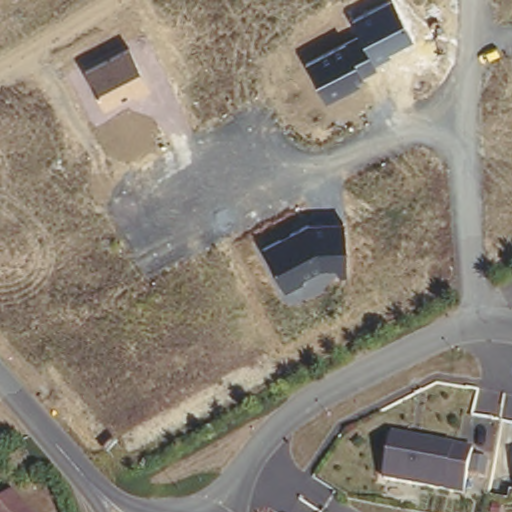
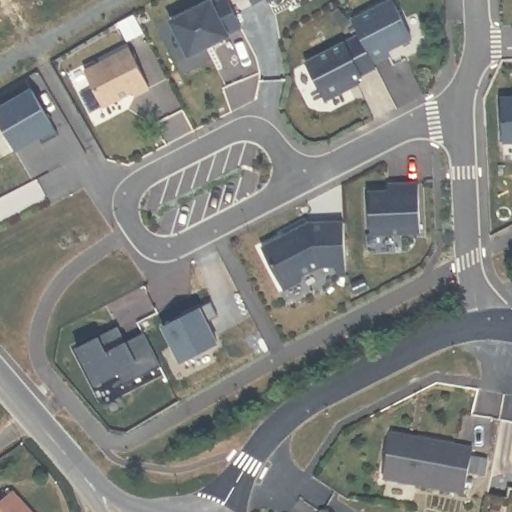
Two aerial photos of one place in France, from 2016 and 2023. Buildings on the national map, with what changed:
new [(211,6),(224,0),(227,0),(241,28),(226,35),(227,37),(189,57),(171,24),(210,3),(211,6)]
new [(264,0),(254,5),(252,0),(264,0)]
new [(275,0),(270,2),(269,0),(275,0)]
unchanged [(390,51),(392,55),(377,64),(378,66),(363,75),(365,80),(324,101),(301,61),(360,32),(351,18),(384,0),(395,0),(414,39),(390,51)]
unchanged [(150,86),(104,110),(83,69),(129,45),(150,86)]
new [(17,151),(0,122),(0,110),(33,90),(60,136),(44,145),(39,138),(33,141),(17,151)]
new [(503,98),(512,97),(512,141),(505,141),(503,98)]
new [(402,191),(402,184),(420,183),(423,231),(373,234),(371,192),(402,191)]
unchanged [(347,272),(336,272),(336,265),(322,266),(301,278),(303,281),(283,290),(257,245),(310,220),(345,218),(347,272)]
new [(211,302),(219,316),(207,322),(218,345),(182,363),(163,327),(211,302)]
new [(118,328),(126,343),(144,334),(162,367),(125,386),(119,375),(97,386),(77,350),(115,330),(118,328)]
unchanged [(217,427),(221,433),(215,437),(211,431),(217,427)]
unchanged [(395,430),(476,444),(468,489),(387,475),(395,430)]
unchanged [(16,485),(40,512),(0,512),(0,499),(16,485)]

